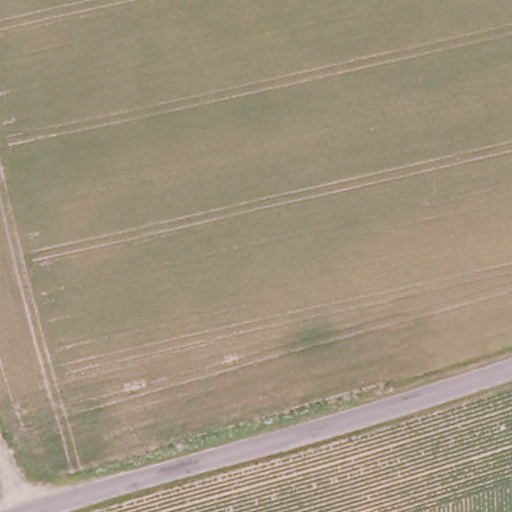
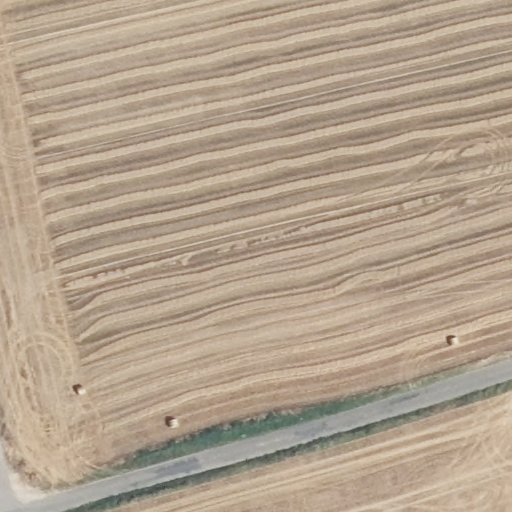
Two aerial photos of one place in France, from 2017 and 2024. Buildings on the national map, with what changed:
[]

